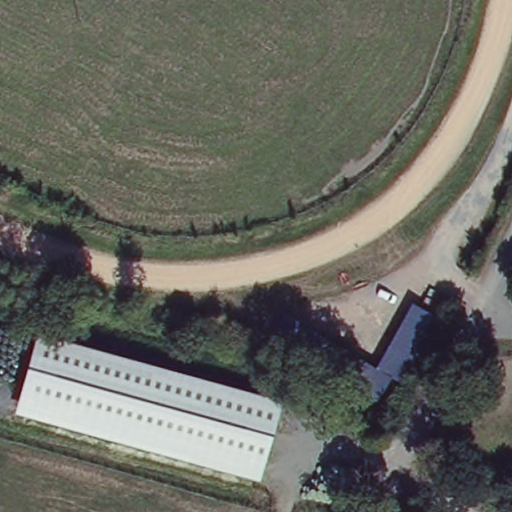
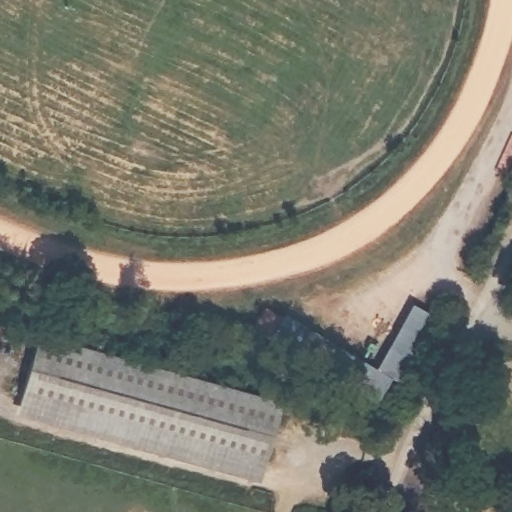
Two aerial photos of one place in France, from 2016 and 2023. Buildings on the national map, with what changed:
unchanged [(376,369),(410,304),(437,318),(402,385),(396,382),(381,408),(273,346),(289,319),(376,369)]
unchanged [(36,333),(280,404),(259,480),(15,413),(36,333)]

